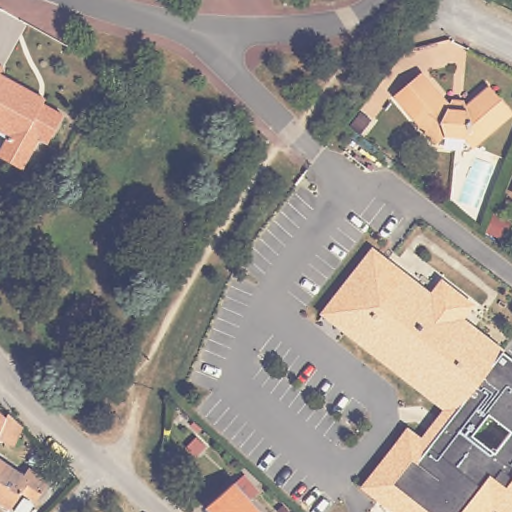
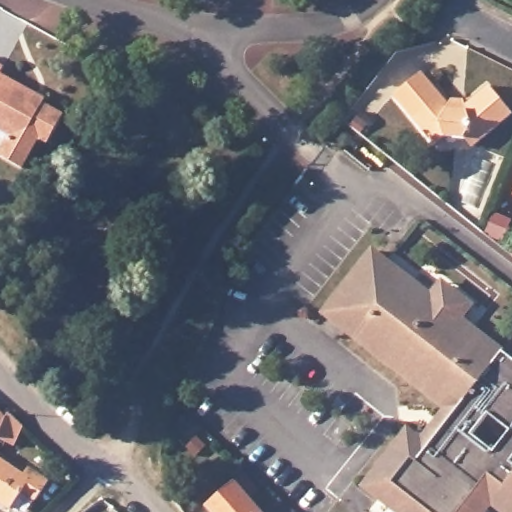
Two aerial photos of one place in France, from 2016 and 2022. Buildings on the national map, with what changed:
unchanged [(39,89),(48,94),(46,98),(66,109),(51,137),(42,133),(26,163),(2,150),(13,129),(0,122),(0,58),(6,61),(2,68),(39,89)]
unchanged [(459,106),(485,87),(507,115),(466,148),(457,138),(438,136),(428,143),(389,95),(419,72),(445,105),(459,106)]
unchanged [(512,188),(512,192),(511,192),(512,188)]
unchanged [(484,512),(397,512),(377,497),(364,486),(375,473),(397,444),(408,431),(422,442),(447,409),(433,398),(348,331),(352,327),(328,309),(374,250),(432,295),(440,286),(442,282),(447,285),(468,302),(472,305),(468,309),(461,319),(512,358),(512,512),(505,512),(492,502),(484,512)]
unchanged [(9,414),(23,427),(14,448),(0,441),(0,413),(6,418),(7,416),(9,414)]
unchanged [(197,437),(206,446),(199,453),(190,445),(197,437)]
unchanged [(24,476),(29,469),(49,483),(35,503),(22,493),(10,511),(0,504),(0,460),(24,476)]
unchanged [(232,482),(258,512),(211,512),(206,506),(232,482)]

